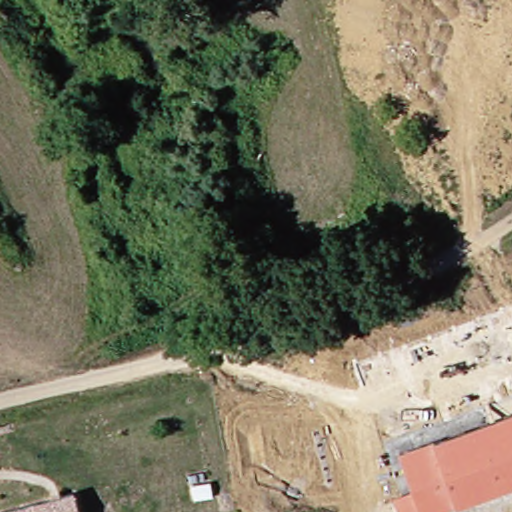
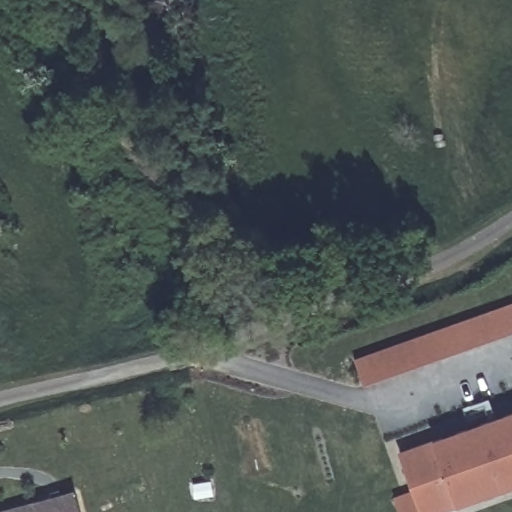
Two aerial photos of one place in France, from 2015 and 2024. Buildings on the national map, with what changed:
unchanged [(220,212),(226,236),(206,240),(204,216),(220,212)]
new [(512,335),(364,385),(355,358),(512,303),(512,335)]
unchanged [(440,512),(398,512),(394,496),(412,491),(399,452),(512,412),(512,486),(452,507),(440,512)]
unchanged [(75,493),(80,512),(9,512),(75,493)]

